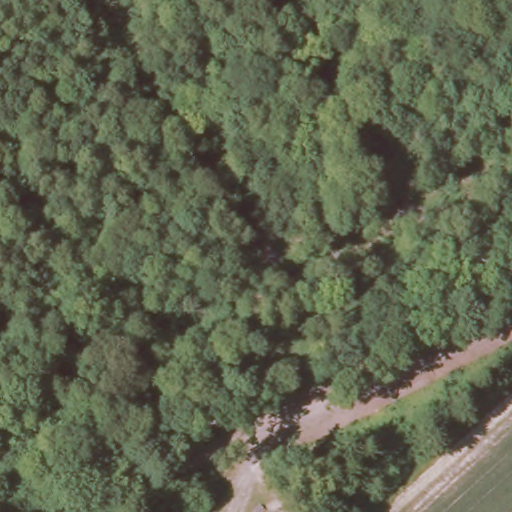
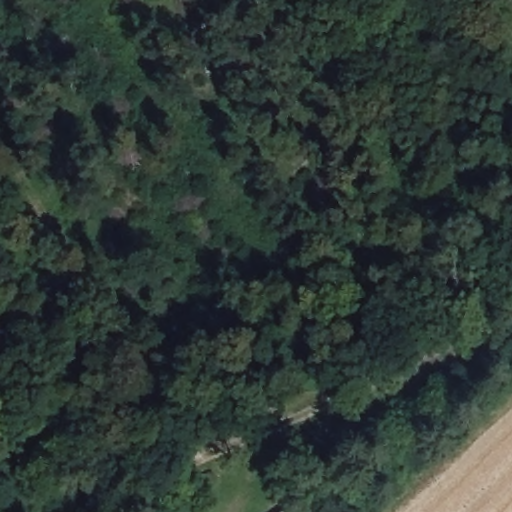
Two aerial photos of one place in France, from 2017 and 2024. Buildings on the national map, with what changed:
unchanged [(285,510),(286,512),(281,512),(285,510)]

